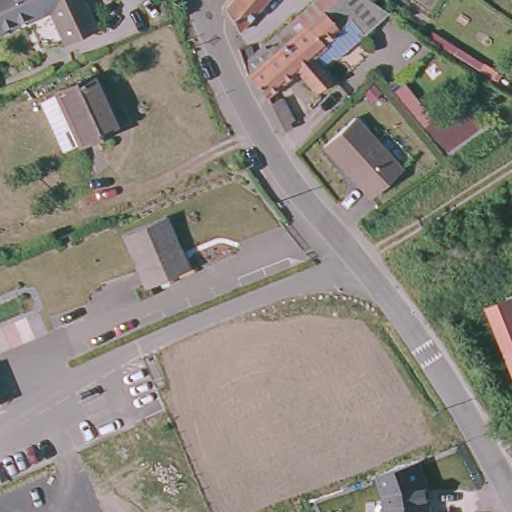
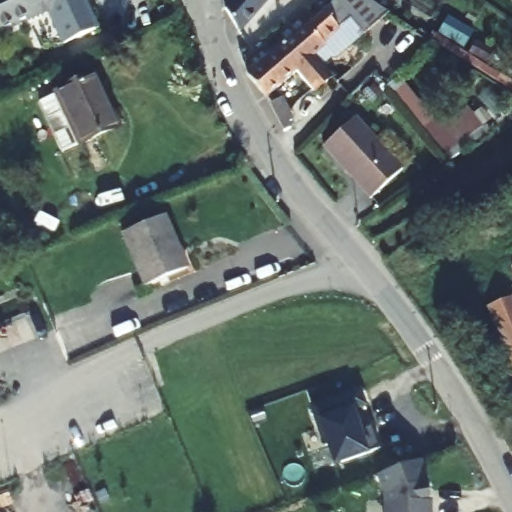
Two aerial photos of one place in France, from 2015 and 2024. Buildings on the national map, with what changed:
unchanged [(64,51),(57,35),(48,16),(43,19),(40,24),(31,28),(27,26),(23,28),(0,38),(0,0),(80,0),(96,36),(64,51)]
unchanged [(221,9),(229,0),(268,0),(237,32),(221,9)]
unchanged [(391,15),(364,37),(349,20),(323,43),(328,46),(313,59),(331,79),(314,95),(296,73),(290,66),(278,51),(270,57),(262,45),(269,40),(287,25),(299,15),(307,24),(335,0),(368,0),(390,14),(391,15)]
unchanged [(243,61),(238,50),(250,46),(253,52),(262,45),(270,57),(278,51),(290,66),(296,73),(266,99),(247,73),(243,61)]
unchanged [(118,128),(59,155),(35,106),(96,81),(118,128)]
unchanged [(404,85),(434,123),(475,95),(496,122),(444,158),(394,94),(404,85)]
unchanged [(281,96),(294,123),(284,131),(270,105),(281,96)]
unchanged [(401,168),(369,197),(322,145),(354,116),(401,168)]
unchanged [(186,273),(143,290),(123,237),(166,218),(186,273)]
unchanged [(512,299),(512,372),(486,308),(512,299)]
new [(362,389),(367,405),(353,411),(360,431),(371,427),(379,450),(336,464),(329,446),(325,447),(311,407),(362,389)]
unchanged [(422,458),(434,486),(433,512),(385,512),(386,495),(378,476),(422,458)]

